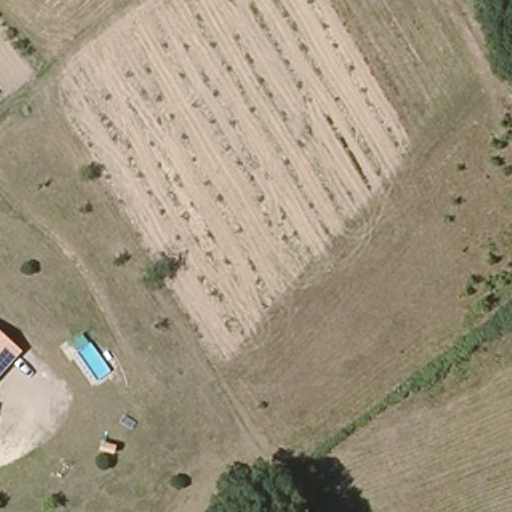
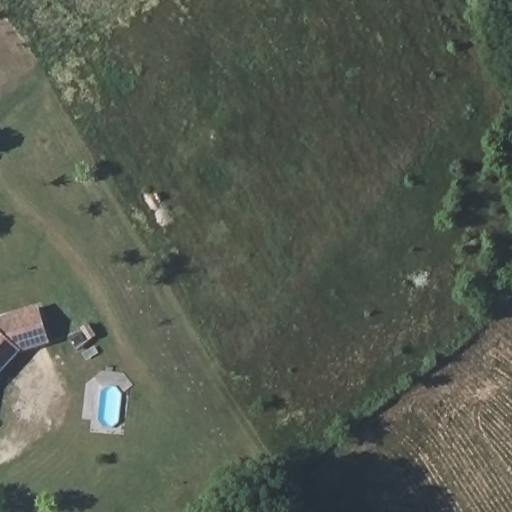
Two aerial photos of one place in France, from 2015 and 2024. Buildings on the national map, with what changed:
new [(0,323),(40,312),(51,343),(26,350),(0,327),(0,323)]
unchanged [(0,378),(0,327),(26,350),(0,378)]

